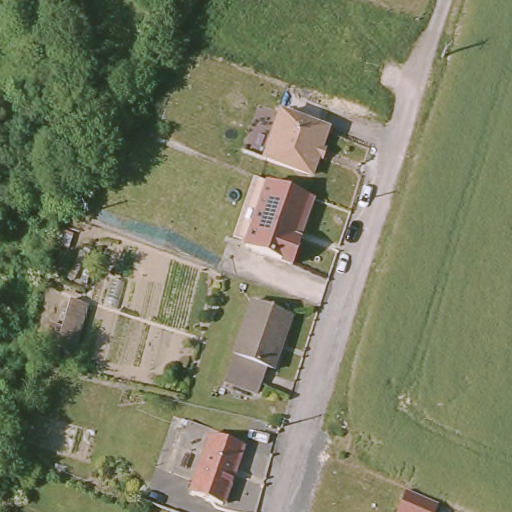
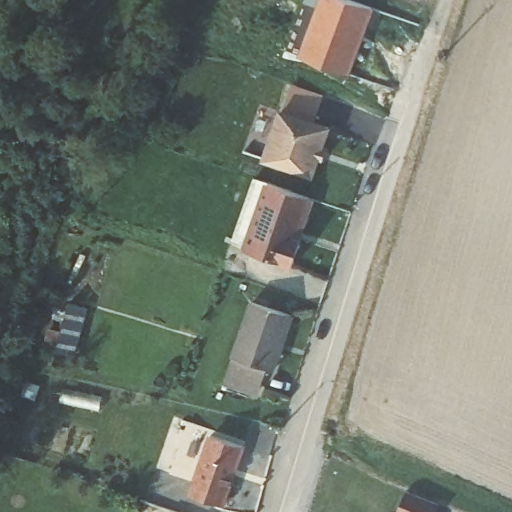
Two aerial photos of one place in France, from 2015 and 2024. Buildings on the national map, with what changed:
new [(287,48),(305,0),(353,0),(375,8),(350,72),(300,54),(287,48)]
new [(282,111),(292,83),(323,95),(313,122),(287,113),(282,111)]
unchanged [(330,164),(325,162),(319,180),(270,162),(287,113),(337,131),(330,151),(335,153),(330,164)]
unchanged [(254,179),(294,196),(279,237),(285,239),(276,263),(230,243),(232,238),(253,178),(254,179)]
unchanged [(295,317),(275,371),(268,369),(262,393),(225,381),(233,354),(251,302),(295,317)]
unchanged [(203,484),(179,476),(195,424),(220,432),(218,437),(251,448),(232,508),(199,497),(203,484)]
unchanged [(439,505),(436,512),(397,512),(405,491),(439,504),(439,505)]

